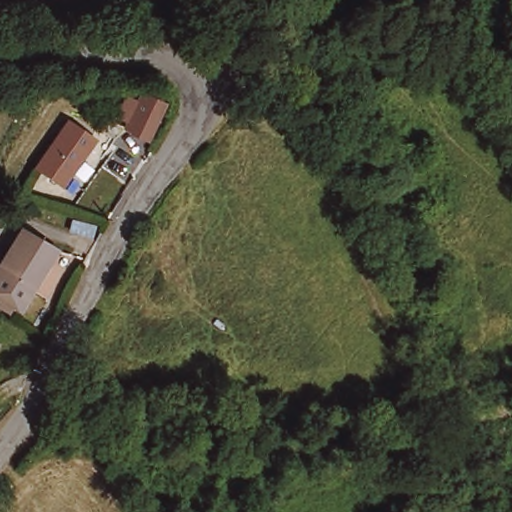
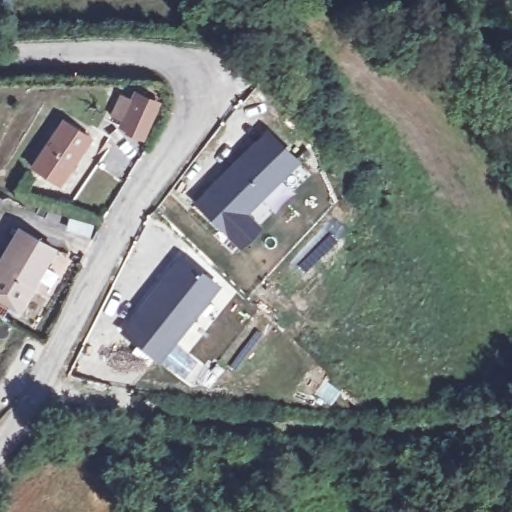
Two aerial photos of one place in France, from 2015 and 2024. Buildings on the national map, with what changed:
unchanged [(153,121),(134,109),(152,81),(152,80),(171,90),(164,103),(153,121)]
unchanged [(80,134),(51,181),(27,166),(57,119),(80,134)]
new [(300,159),(248,213),(262,226),(241,248),(194,203),(265,128),(300,159)]
unchanged [(64,243),(27,300),(0,283),(0,267),(29,221),(64,243)]
new [(119,331),(180,253),(221,285),(160,363),(119,331)]
unchanged [(74,410),(82,409),(85,410),(85,426),(65,424),(66,412),(74,410)]

